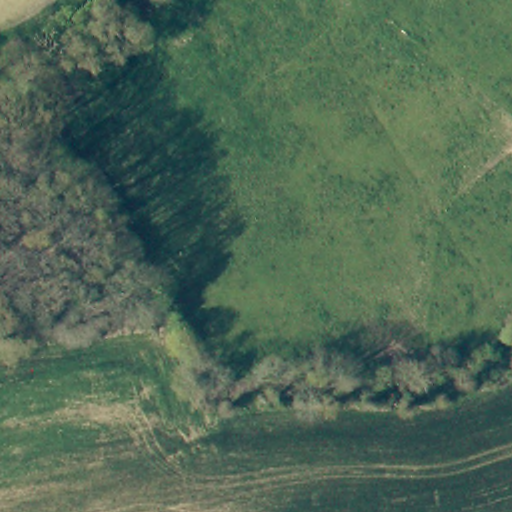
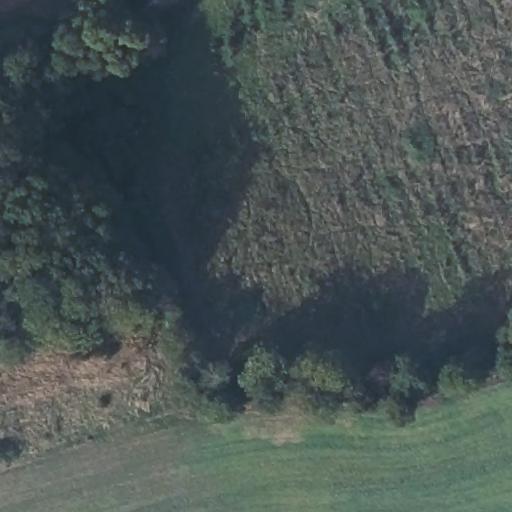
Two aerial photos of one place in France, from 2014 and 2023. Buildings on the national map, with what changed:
[]

